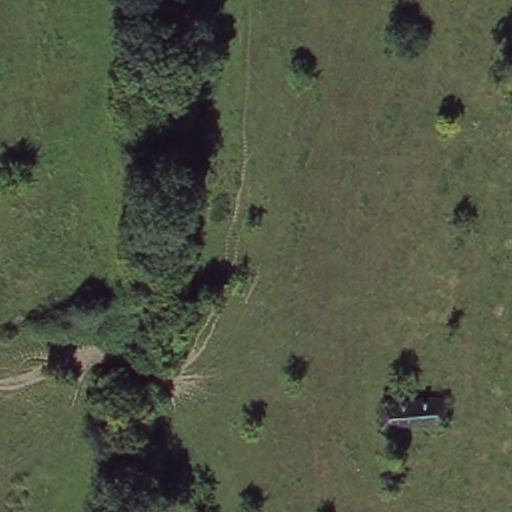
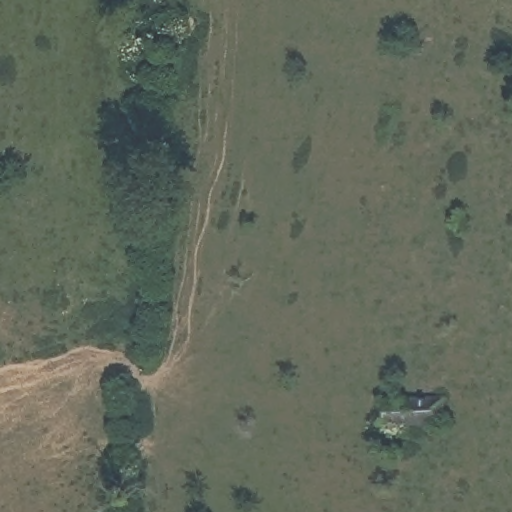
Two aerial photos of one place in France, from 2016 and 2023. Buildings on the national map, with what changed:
unchanged [(442,398),(442,420),(387,420),(387,399),(442,398)]

